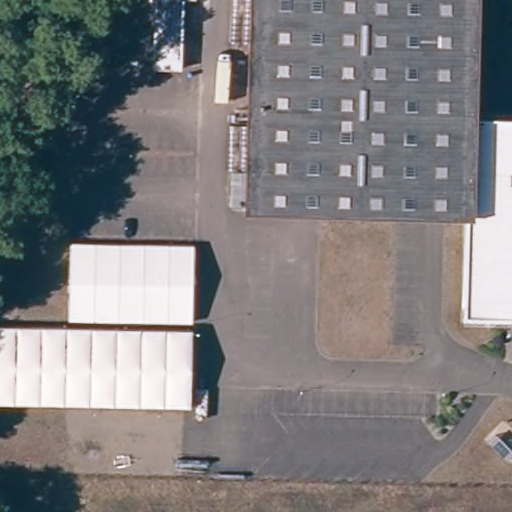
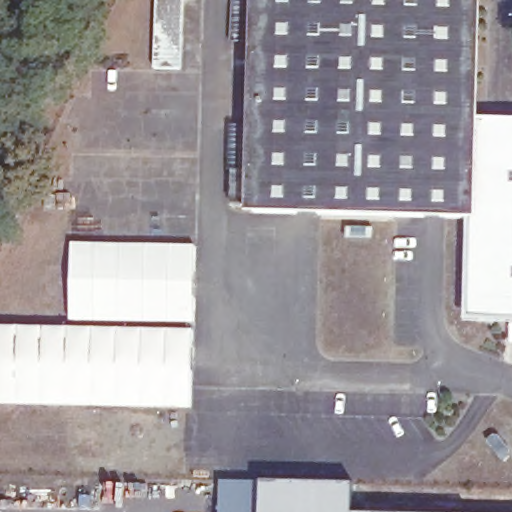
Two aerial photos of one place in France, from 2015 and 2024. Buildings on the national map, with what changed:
unchanged [(152,0),(185,0),(185,66),(153,66),(152,0)]
unchanged [(501,342),(501,327),(494,326),(484,334),(475,325),(464,325),(457,316),(461,224),(237,216),(247,0),(465,0),(462,128),(512,129),(512,342),(501,342)]
unchanged [(0,403),(0,320),(68,320),(68,234),(197,238),(195,403),(0,403)]
new [(260,482),(259,512),(219,512),(220,480),(260,482)]
new [(352,483),(352,512),(259,512),(260,482),(352,483)]

